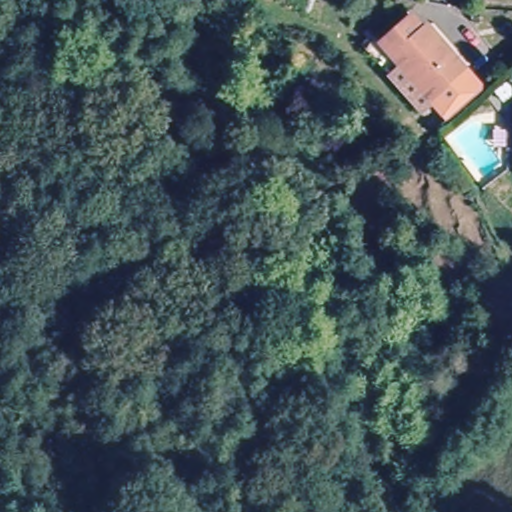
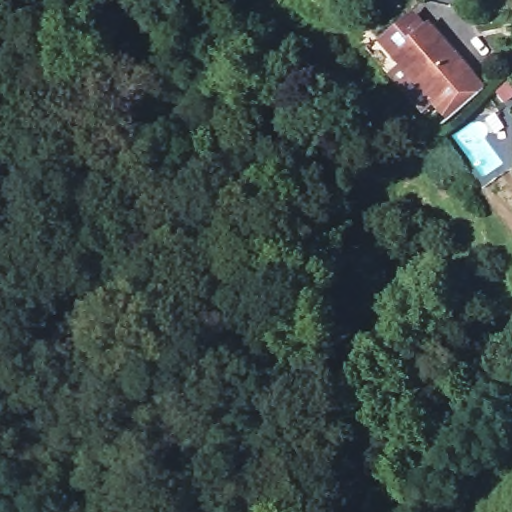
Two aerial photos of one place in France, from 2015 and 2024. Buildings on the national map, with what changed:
unchanged [(379,62),(391,52),(370,29),(401,1),(414,15),(417,12),(457,57),(471,74),(465,79),(425,115),(379,62)]

